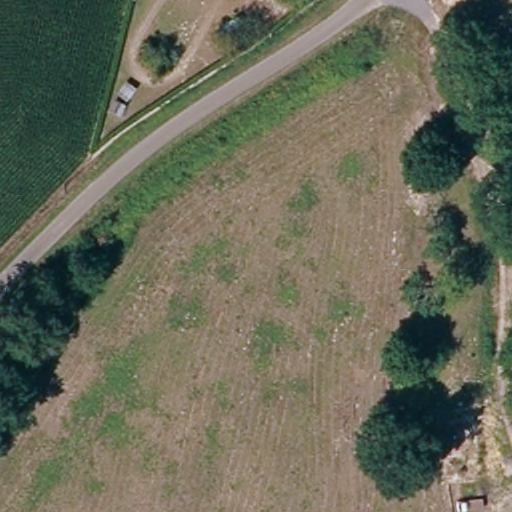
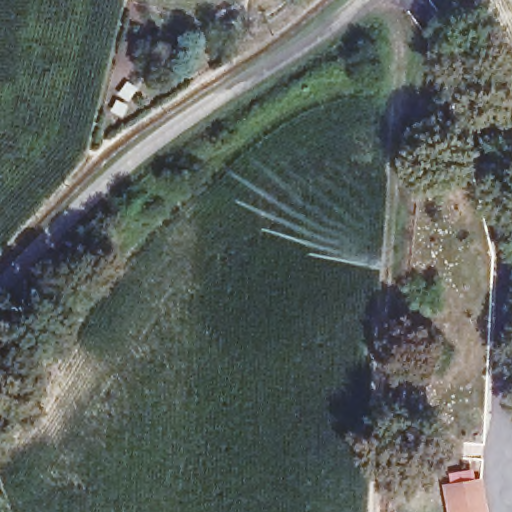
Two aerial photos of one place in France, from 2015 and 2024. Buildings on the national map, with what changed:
new [(481,478),(486,512),(446,512),(441,484),(481,478)]

